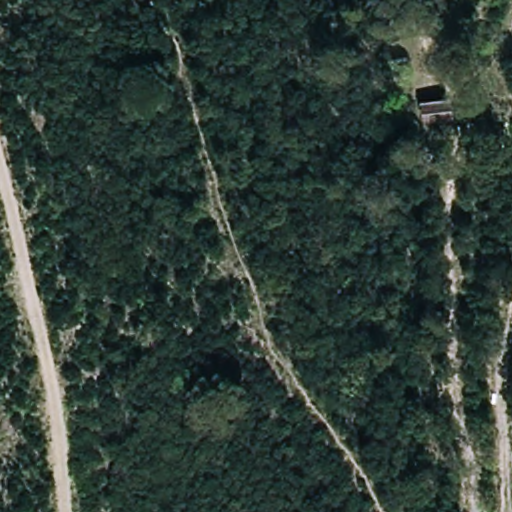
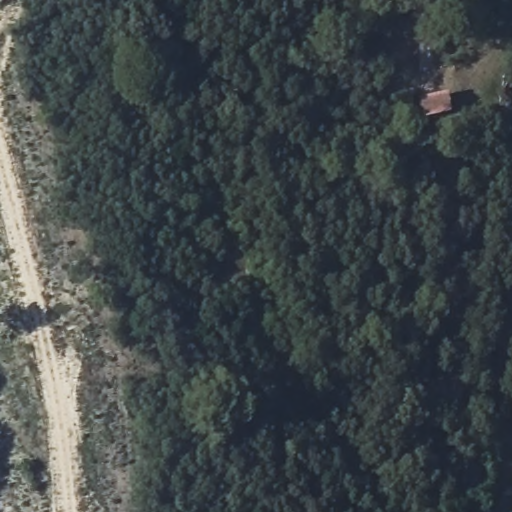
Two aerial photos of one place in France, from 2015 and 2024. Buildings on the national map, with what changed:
unchanged [(447,120),(423,121),(421,103),(443,102),(447,120)]

